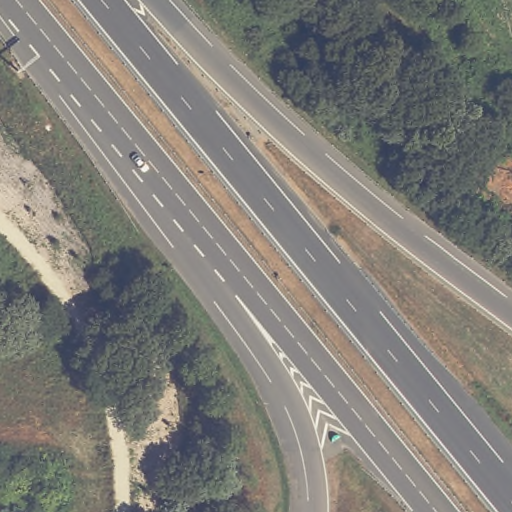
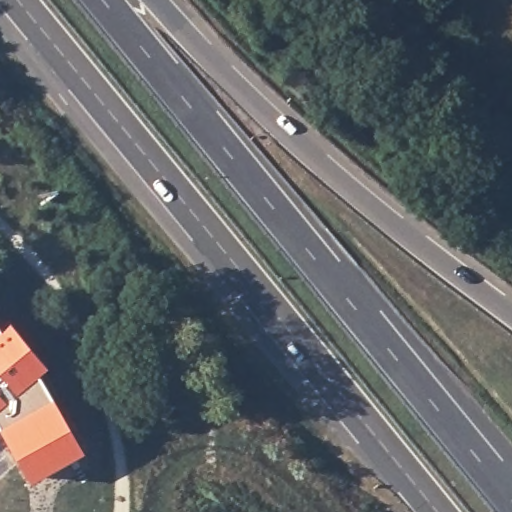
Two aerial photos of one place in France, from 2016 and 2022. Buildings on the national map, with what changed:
new [(8,316),(48,365),(39,373),(80,447),(28,477),(0,426),(0,323),(8,316)]

